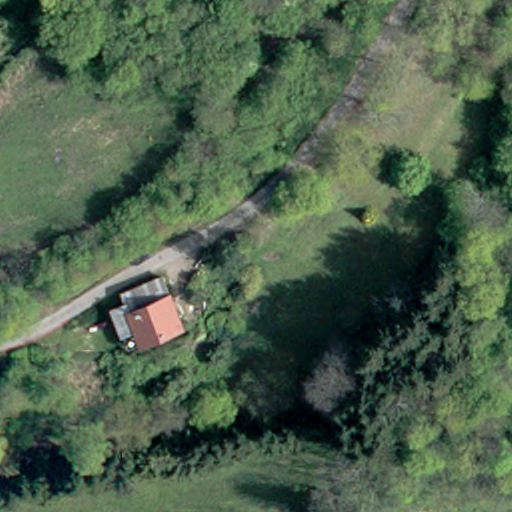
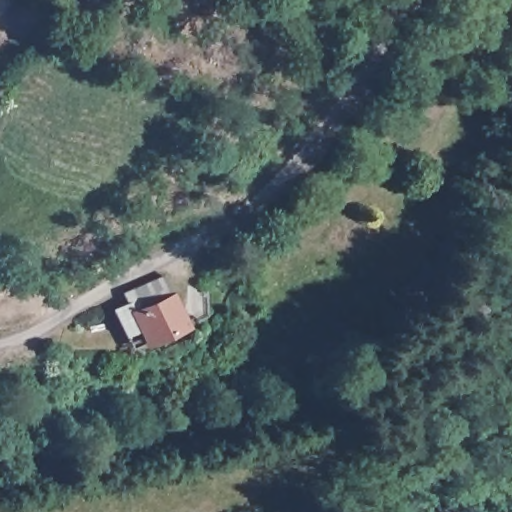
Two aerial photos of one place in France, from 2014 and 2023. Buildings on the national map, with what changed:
unchanged [(174,282),(189,306),(188,306),(159,322),(133,336),(133,335),(118,312),(174,282)]

